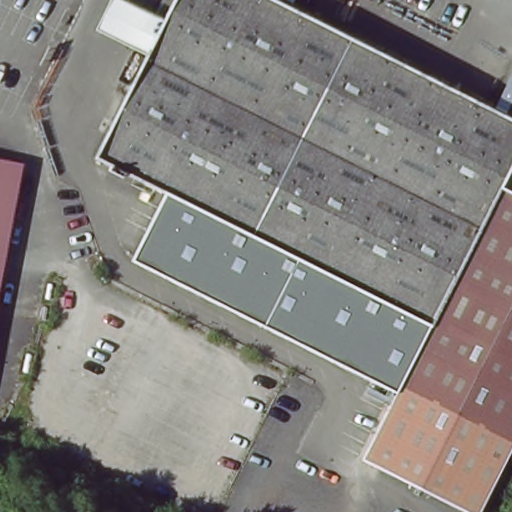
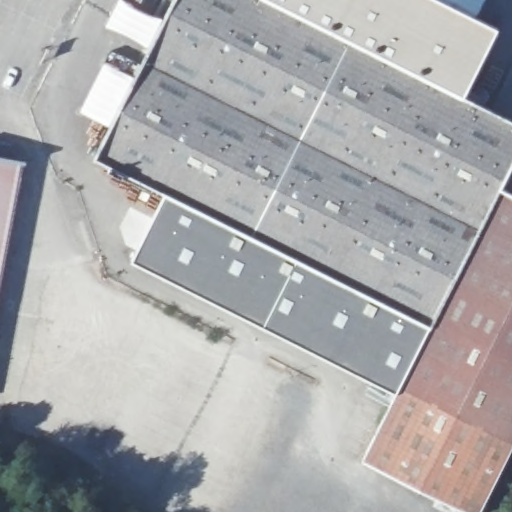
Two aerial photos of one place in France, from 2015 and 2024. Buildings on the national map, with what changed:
unchanged [(163,21),(174,0),(269,0),(512,123),(512,160),(498,187),(512,195),(512,444),(510,450),(478,512),(468,512),(363,460),(396,392),(132,260),(166,193),(122,171),(119,176),(107,170),(109,165),(95,158),(146,55),(163,21)]
unchanged [(146,55),(96,30),(111,0),(121,0),(163,21),(146,55)]
new [(497,29),(462,97),(269,0),(436,0),(497,29)]
unchanged [(0,285),(0,166),(22,170),(0,285)]

